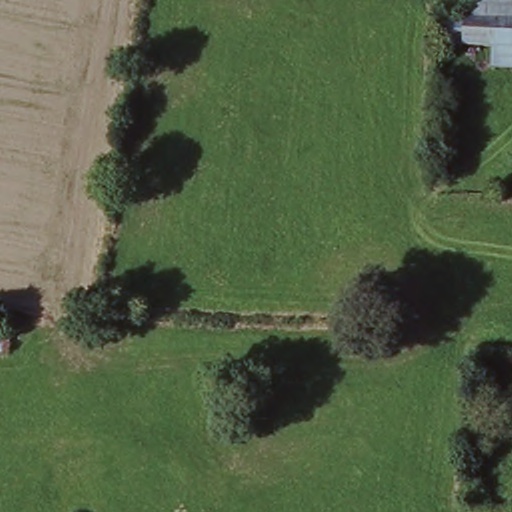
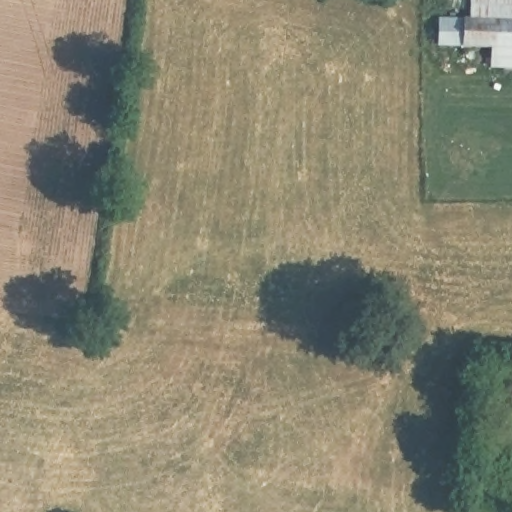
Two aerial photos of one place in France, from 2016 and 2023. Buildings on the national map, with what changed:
unchanged [(512,72),(497,72),(499,52),(469,50),(445,50),(445,23),(469,23),(476,23),(477,1),(512,2),(512,72)]

